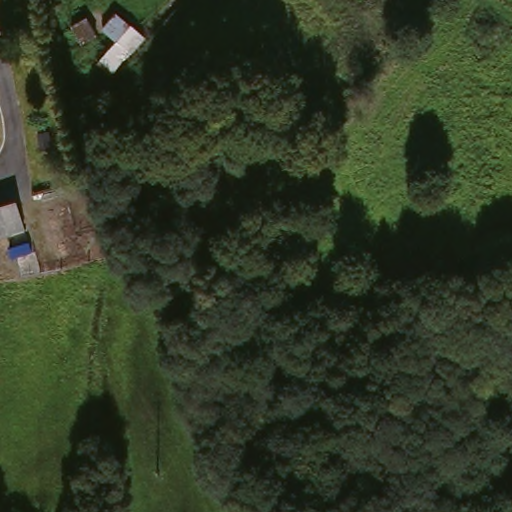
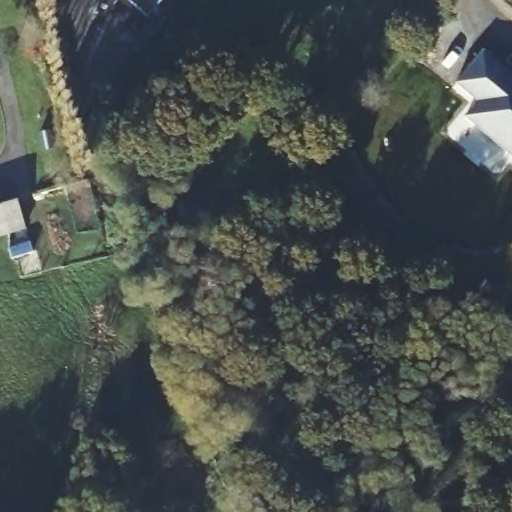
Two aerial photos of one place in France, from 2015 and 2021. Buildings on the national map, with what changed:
unchanged [(116,5),(145,31),(118,66),(102,54),(116,37),(101,25),(116,5)]
new [(497,84),(509,94),(512,91),(512,158),(497,145),(504,136),(488,122),(482,130),(465,117),(478,101),(456,83),(481,53),(506,73),(497,84)]
unchanged [(23,194),(31,221),(14,225),(12,217),(0,221),(0,200),(6,198),(23,194)]

